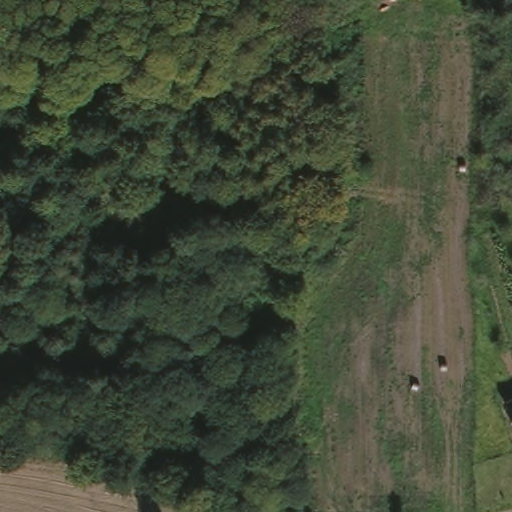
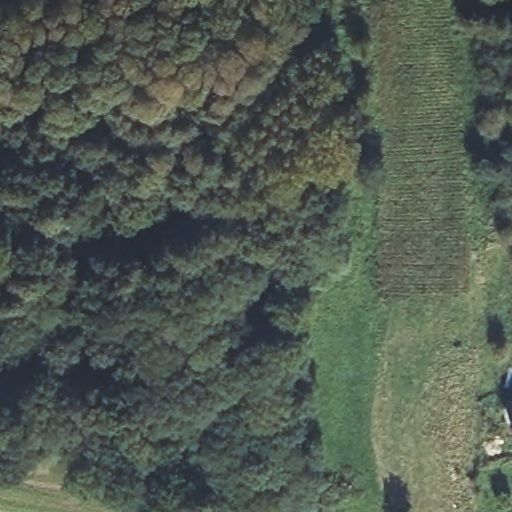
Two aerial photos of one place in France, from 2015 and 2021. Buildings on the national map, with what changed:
unchanged [(512,427),(505,408),(512,405),(512,427)]

